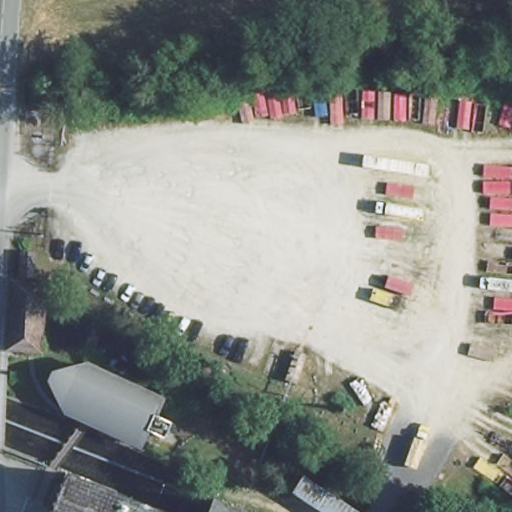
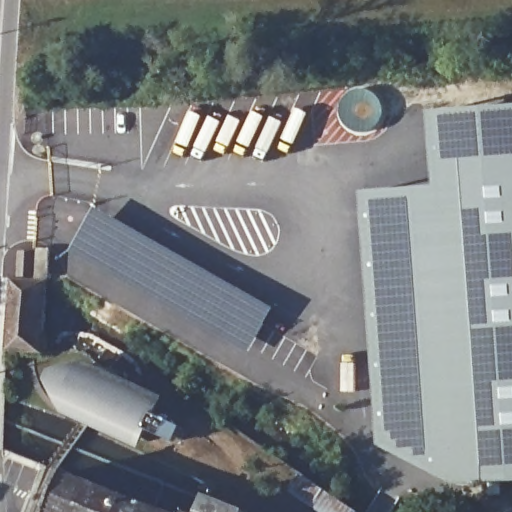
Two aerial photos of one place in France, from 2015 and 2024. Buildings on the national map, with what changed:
new [(354,98),(376,102),(373,122),(367,127),(359,132),(344,124),(354,98)]
new [(432,112),(512,105),(512,484),(470,488),(459,487),(383,448),(364,191),(437,186),(432,112)]
new [(69,251),(95,206),(275,307),(247,352),(206,332),(203,338),(206,340),(200,351),(111,304),(64,276),(69,251)]
unchanged [(28,240),(26,261),(14,259),(17,238),(28,240)]
unchanged [(10,277),(10,264),(10,263),(31,265),(31,266),(31,268),(31,272),(31,276),(31,278),(31,280),(30,282),(10,279),(10,277)]
unchanged [(5,353),(9,281),(30,283),(31,283),(32,283),(34,284),(46,286),(46,287),(46,288),(46,292),(46,296),(45,304),(42,355),(5,353)]
unchanged [(165,392),(158,409),(176,417),(168,433),(150,426),(144,438),(72,408),(60,386),(51,370),(70,364),(90,359),(165,392)]
unchanged [(157,506),(172,512),(52,512),(68,471),(157,506)]
unchanged [(301,476),(352,512),(326,512),(293,489),(301,476)]
unchanged [(256,510),(255,512),(210,512),(219,491),(256,510)]
unchanged [(198,512),(194,512),(195,510),(198,512)]

